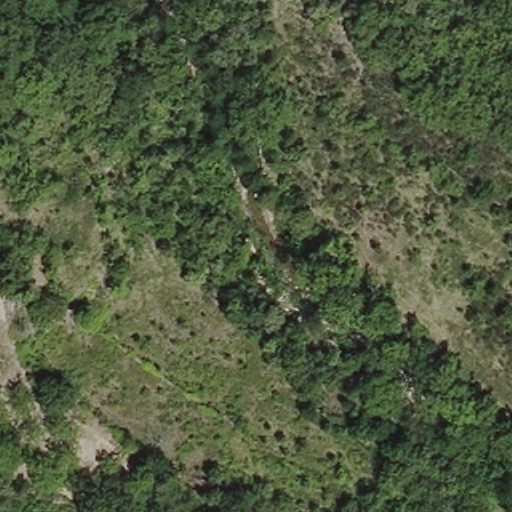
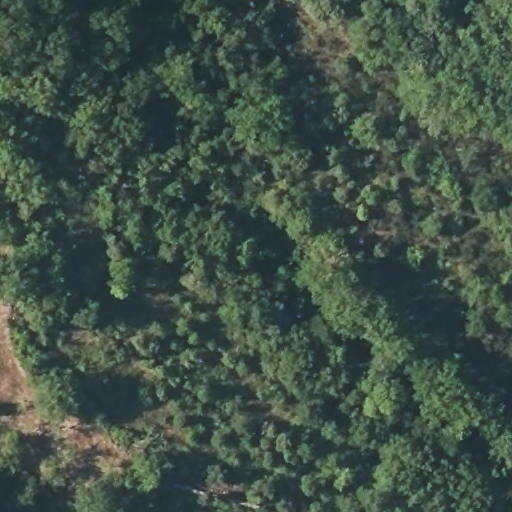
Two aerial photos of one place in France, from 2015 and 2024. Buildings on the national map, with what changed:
unchanged [(512,62),(512,78),(506,75),(512,62)]

